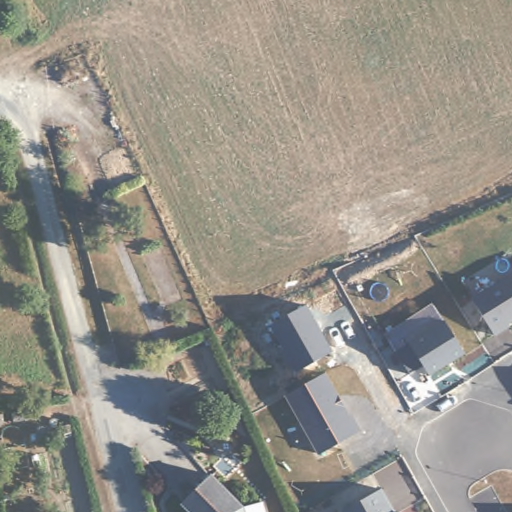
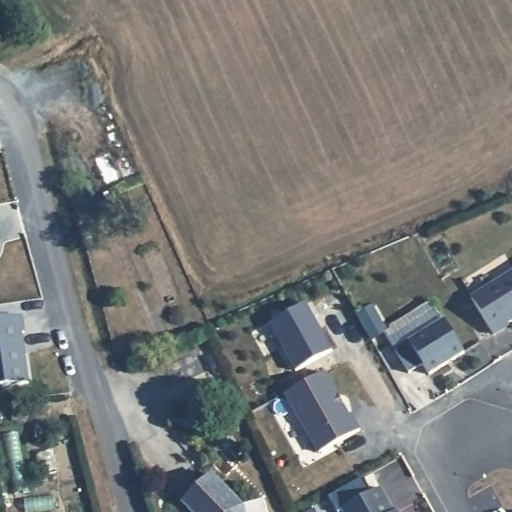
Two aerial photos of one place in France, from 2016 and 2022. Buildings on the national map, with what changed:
unchanged [(508,326),(494,336),(471,300),(512,274),(512,321),(507,324),(508,326)]
unchanged [(422,362),(409,375),(385,337),(431,306),(442,321),(467,354),(430,377),(422,362)]
unchanged [(298,372),(273,328),(306,309),(334,352),(298,372)]
new [(22,317),(25,334),(22,335),(24,343),(21,347),(21,352),(25,355),(29,383),(0,388),(0,320),(22,317)]
unchanged [(354,416),(362,431),(319,455),(286,398),(327,378),(349,418),(354,416)]
unchanged [(265,512),(193,512),(184,505),(206,477),(242,505),(261,498),(265,512)]
unchanged [(382,491),(388,502),(394,512),(344,512),(382,491)]

